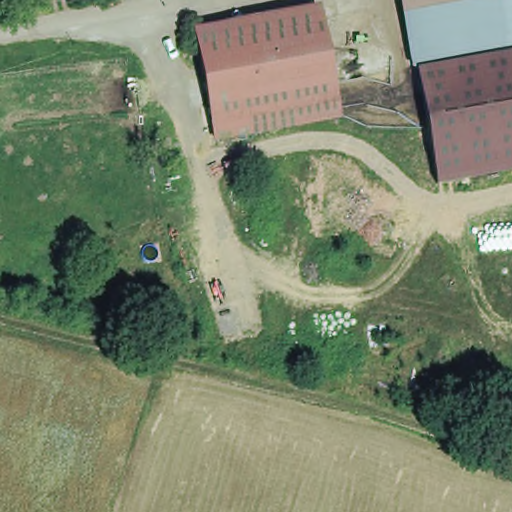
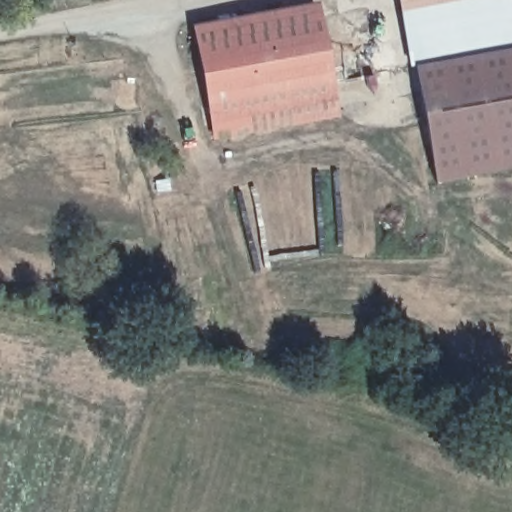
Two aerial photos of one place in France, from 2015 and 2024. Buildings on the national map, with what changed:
unchanged [(512,0),(512,170),(437,184),(415,66),(400,0),(512,0)]
unchanged [(216,136),(194,27),(315,3),(338,112),(216,136)]

